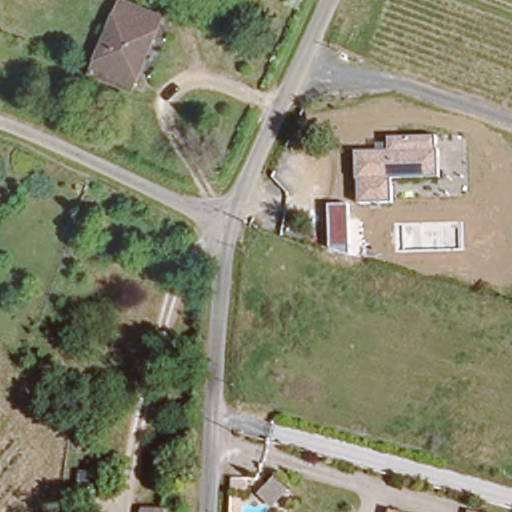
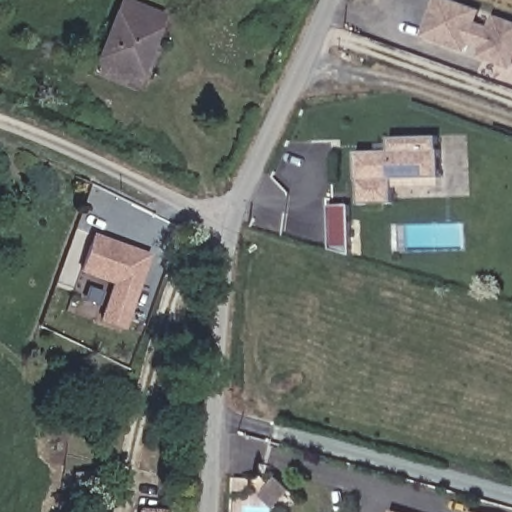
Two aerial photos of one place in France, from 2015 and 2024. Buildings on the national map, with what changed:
unchanged [(156,10),(149,23),(158,26),(139,70),(131,66),(125,83),(96,70),(126,0),(129,0),(156,10)]
new [(465,52),(422,38),(435,0),(452,0),(480,9),(476,22),(488,26),(491,15),(512,22),(512,67),(511,69),(478,58),(480,47),(467,44),(465,52)]
unchanged [(389,150),(390,136),(439,134),(440,177),(393,179),(393,202),(359,204),(358,152),(389,150)]
new [(352,255),(331,249),(331,205),(351,205),(352,255)]
new [(78,272),(92,232),(150,254),(123,329),(98,320),(110,283),(78,272)]
new [(280,477),(295,492),(277,510),(263,496),(280,477)]
unchanged [(473,512),(467,512),(468,510),(473,512)]

